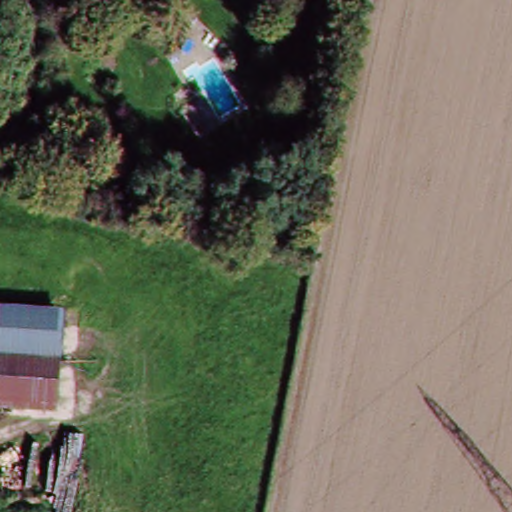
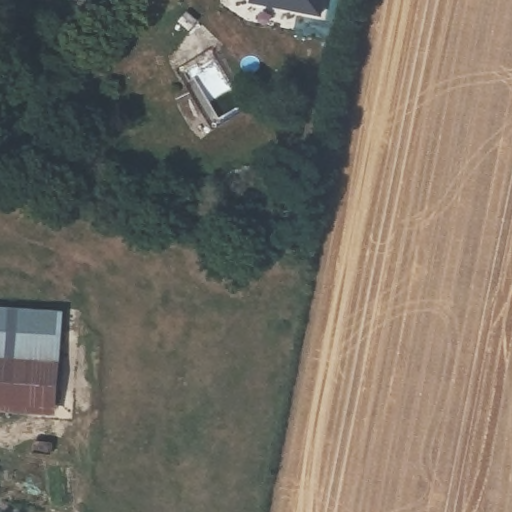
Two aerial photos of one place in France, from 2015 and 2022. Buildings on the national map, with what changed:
new [(253,3),(253,0),(325,0),(323,16),(253,3)]
unchanged [(34,156),(42,129),(58,134),(51,161),(34,156)]
unchanged [(62,311),(57,409),(0,404),(0,306),(62,311)]

